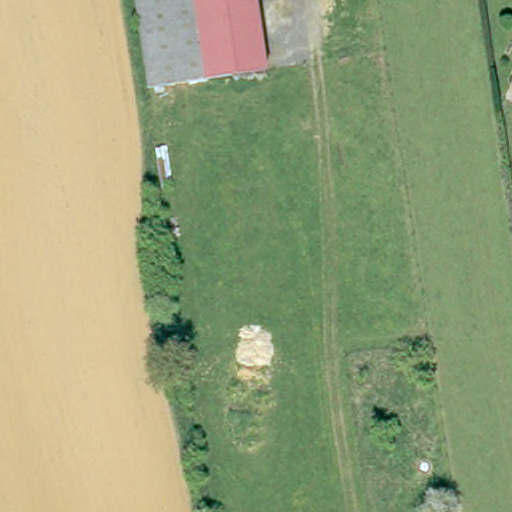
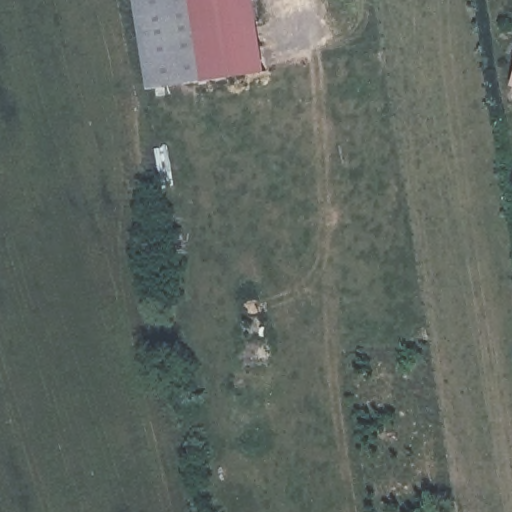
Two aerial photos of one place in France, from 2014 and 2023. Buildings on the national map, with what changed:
unchanged [(269,65),(150,82),(138,0),(259,0),(269,65)]

